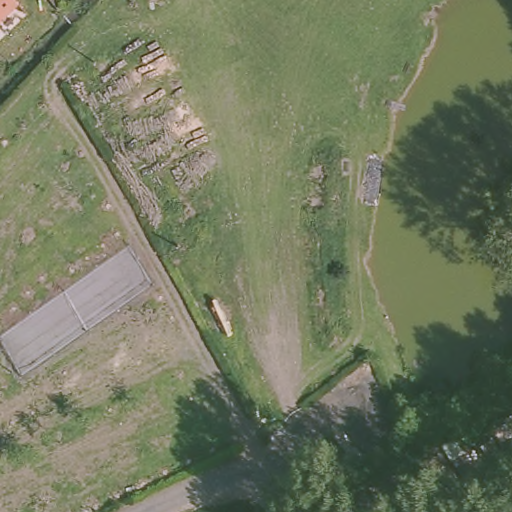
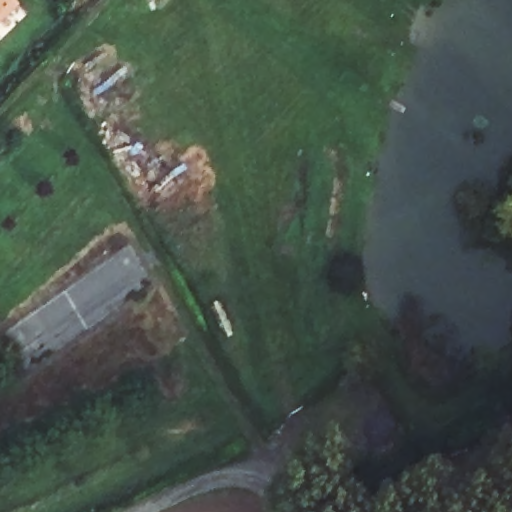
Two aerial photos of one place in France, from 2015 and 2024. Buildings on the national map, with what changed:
unchanged [(14,0),(19,5),(0,24),(0,0),(14,0)]

